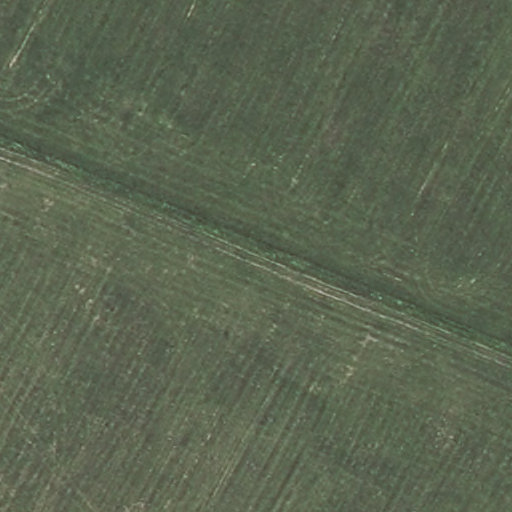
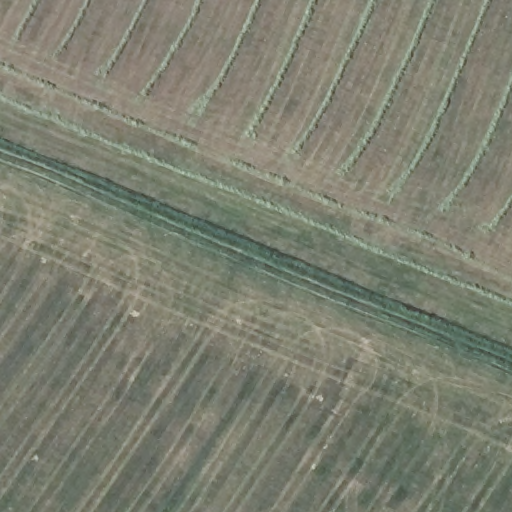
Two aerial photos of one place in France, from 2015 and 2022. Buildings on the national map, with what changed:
[]

